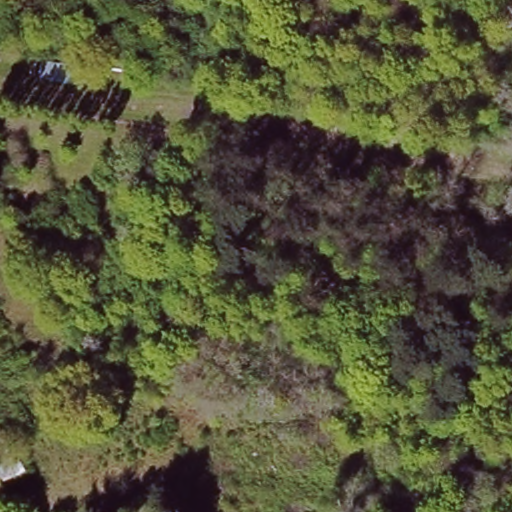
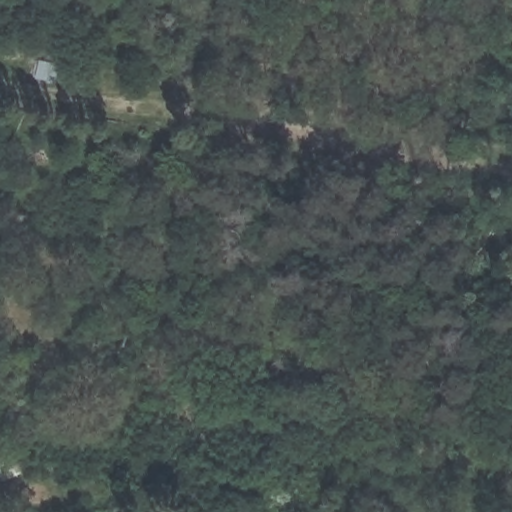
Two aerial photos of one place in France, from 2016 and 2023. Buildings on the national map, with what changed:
[]

